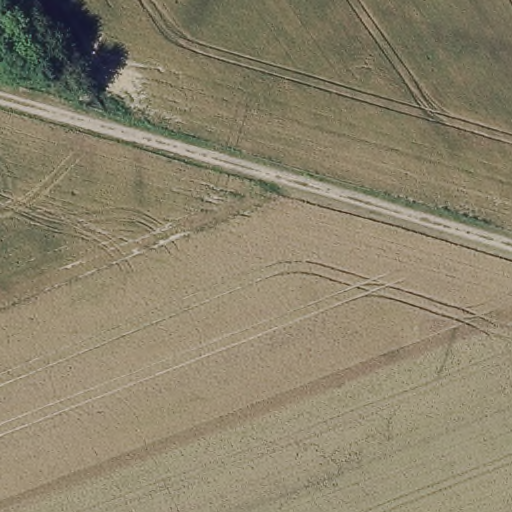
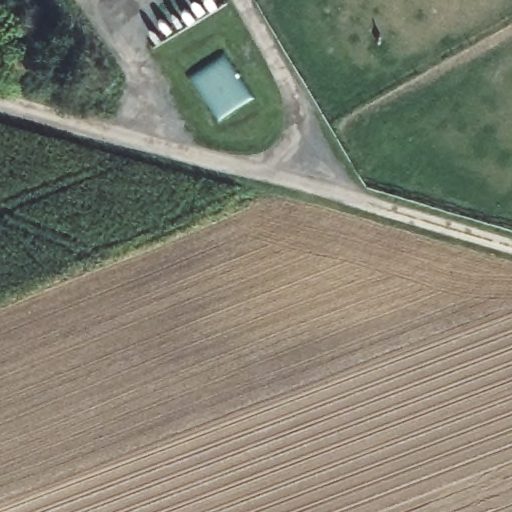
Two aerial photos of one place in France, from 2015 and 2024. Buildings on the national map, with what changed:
[]

